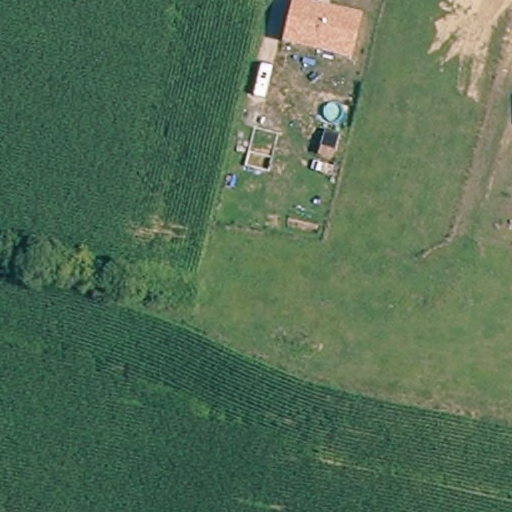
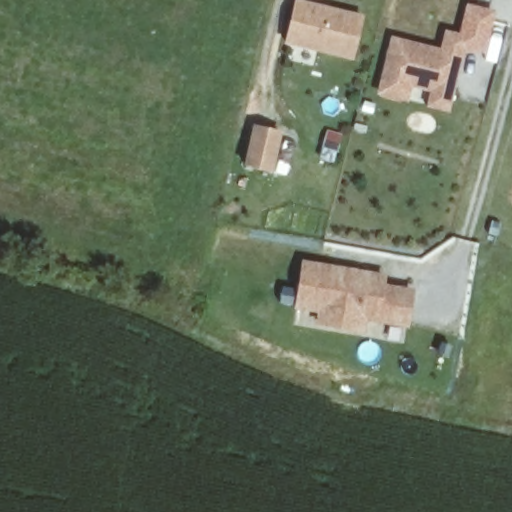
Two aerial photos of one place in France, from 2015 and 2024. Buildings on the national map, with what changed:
unchanged [(294,0),(301,0),(363,13),(353,60),(283,45),(294,0)]
new [(410,83),(407,98),(381,91),(393,38),(442,50),(447,31),(465,35),(452,92),(448,107),(430,103),(434,88),(410,83)]
new [(257,123),(281,128),(273,167),(248,162),(257,123)]
new [(348,323),(322,319),(324,307),(300,303),(306,260),(365,268),(387,271),(386,275),(385,280),(381,314),(368,313),(366,325),(348,323)]
new [(385,280),(415,285),(410,318),(381,314),(385,280)]

